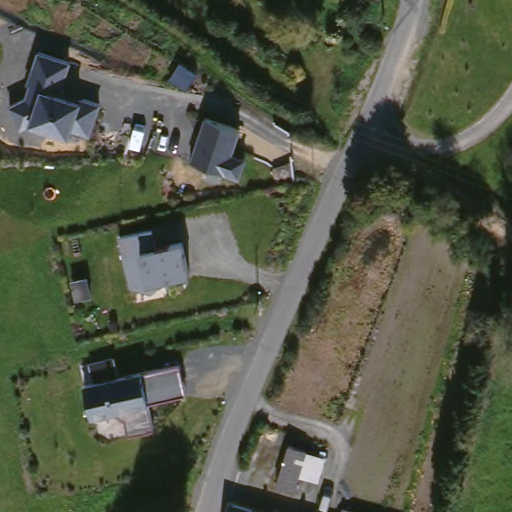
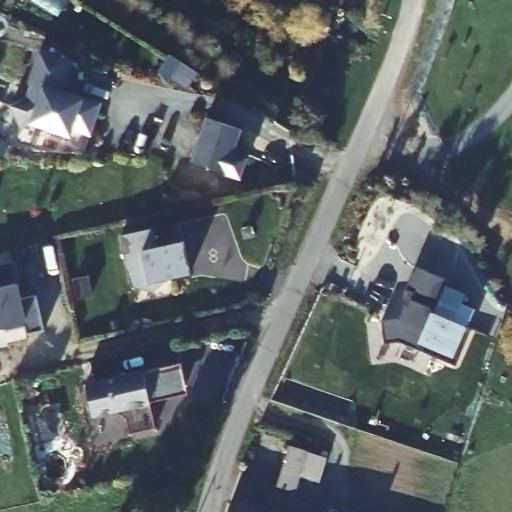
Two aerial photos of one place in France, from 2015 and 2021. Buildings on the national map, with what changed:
unchanged [(92,137),(72,132),(72,136),(31,123),(20,129),(10,105),(26,97),(39,48),(72,59),(62,91),(84,98),(104,104),(92,137)]
unchanged [(209,112),(243,123),(235,148),(238,154),(247,157),(242,172),(194,157),(209,112)]
unchanged [(157,245),(180,241),(189,270),(164,277),(166,285),(134,291),(121,236),(152,227),(157,245)]
new [(23,284),(19,285),(23,298),(39,294),(47,330),(30,334),(28,326),(8,331),(7,325),(0,327),(0,264),(17,260),(23,284)]
new [(397,318),(402,307),(405,309),(411,294),(403,290),(413,266),(446,280),(432,313),(470,329),(455,366),(398,342),(383,344),(380,321),(397,318)]
unchanged [(132,433),(129,417),(117,409),(96,414),(89,383),(185,362),(190,385),(160,391),(162,399),(152,402),(159,427),(132,433)]
unchanged [(302,456),(290,496),(272,491),(285,451),(302,456)]
unchanged [(248,512),(218,512),(220,503),(248,512)]
unchanged [(348,512),(333,512),(334,507),(348,512)]

